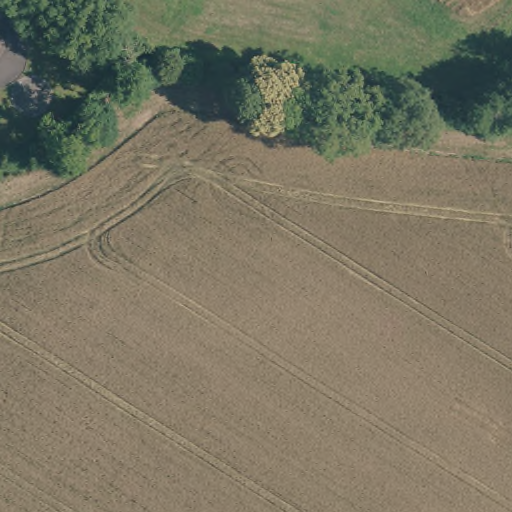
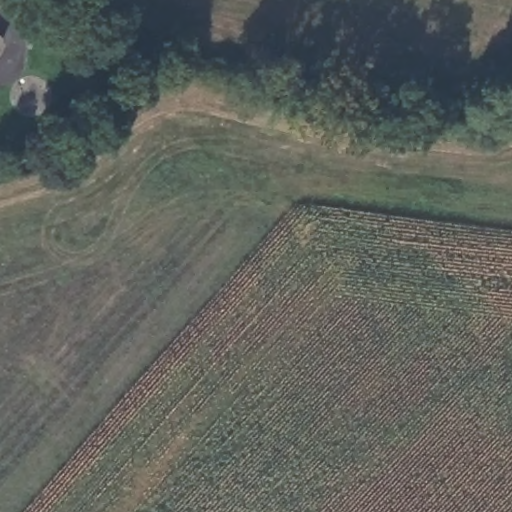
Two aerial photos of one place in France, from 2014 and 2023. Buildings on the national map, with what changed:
unchanged [(0,46),(0,35),(5,40),(0,46)]

